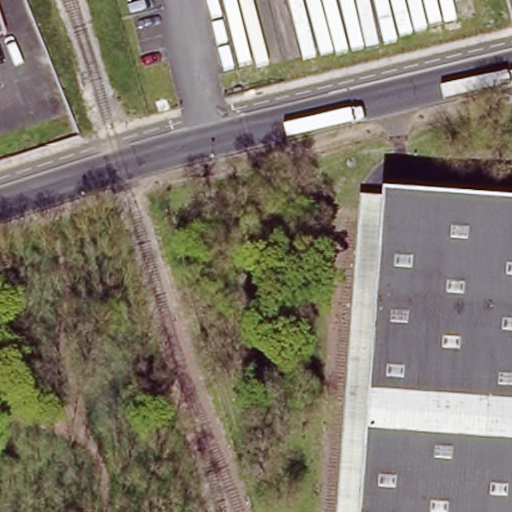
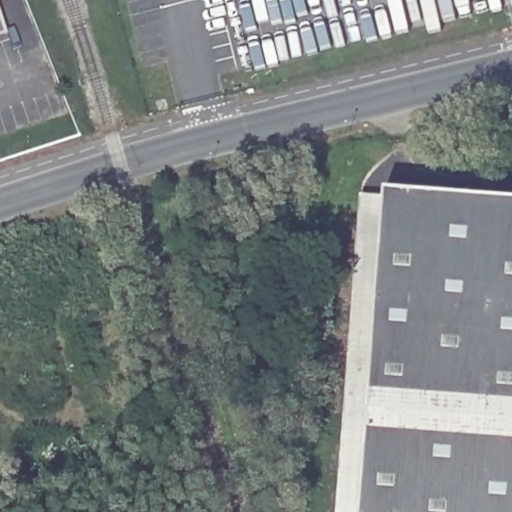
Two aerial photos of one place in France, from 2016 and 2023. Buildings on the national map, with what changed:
unchanged [(4,34),(0,36),(0,23),(4,34)]
unchanged [(390,199),(367,512),(345,512),(368,197),(390,199)]
unchanged [(390,199),(390,198),(512,207),(512,512),(367,512),(390,199)]

